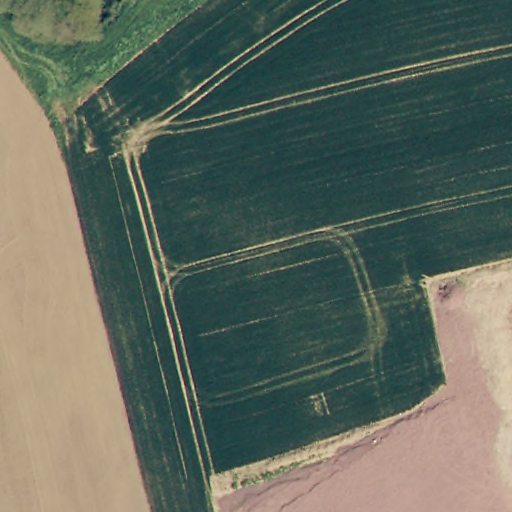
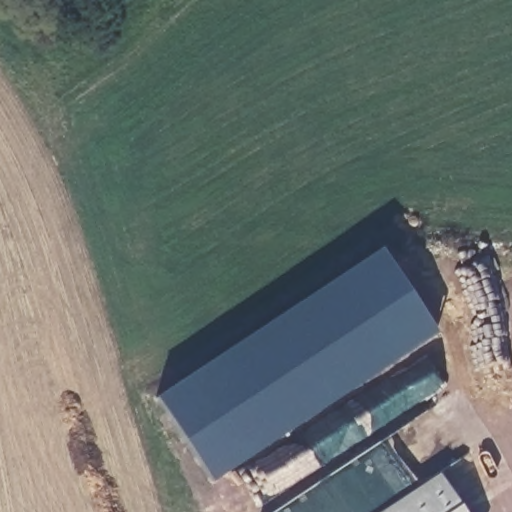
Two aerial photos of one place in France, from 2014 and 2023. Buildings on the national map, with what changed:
new [(377,250),(432,334),(208,481),(152,398),(377,250)]
new [(436,474),(461,512),(378,512),(436,474)]

